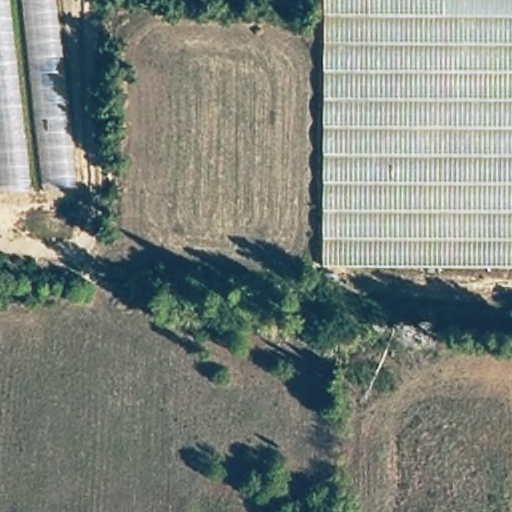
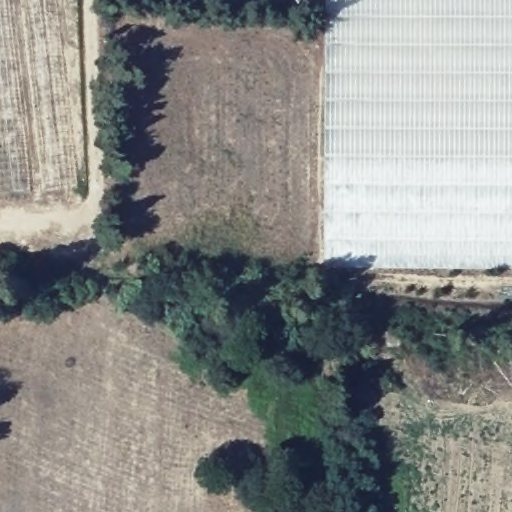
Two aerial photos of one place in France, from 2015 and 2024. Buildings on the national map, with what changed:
unchanged [(77,186),(0,195),(0,0),(57,0),(77,186)]
unchanged [(316,0),(512,0),(512,273),(311,275),(316,0)]

